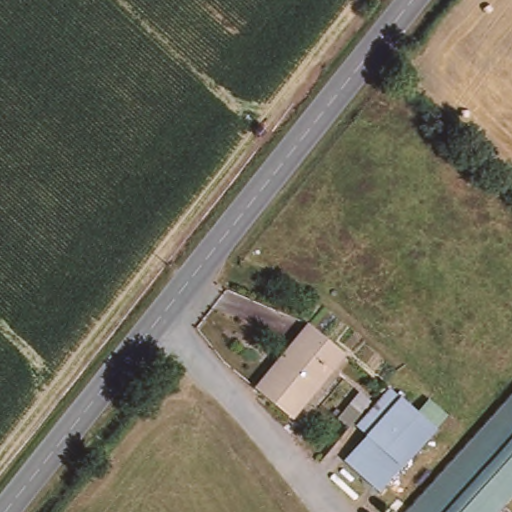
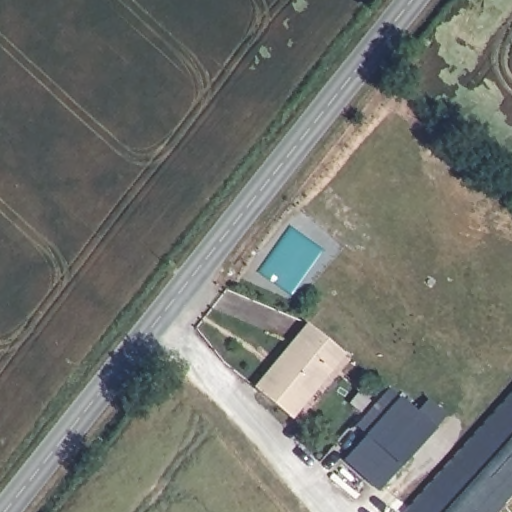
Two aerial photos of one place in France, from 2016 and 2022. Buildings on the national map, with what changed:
unchanged [(347,354),(295,417),(292,414),(263,391),(257,386),(293,343),(309,323),(347,354)]
unchanged [(497,512),(410,512),(512,394),(512,495),(497,512)]
unchanged [(432,429),(384,488),(348,459),(397,400),(432,429)]

